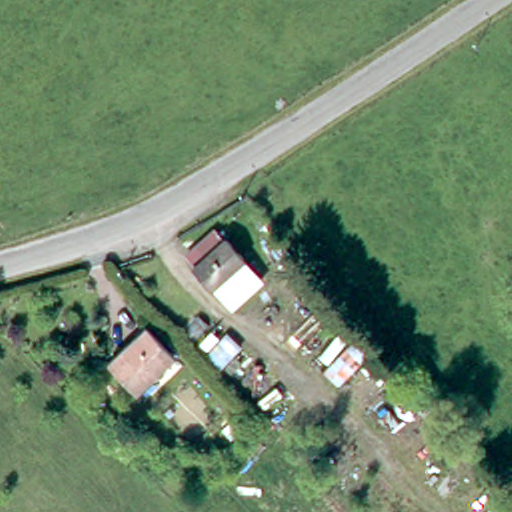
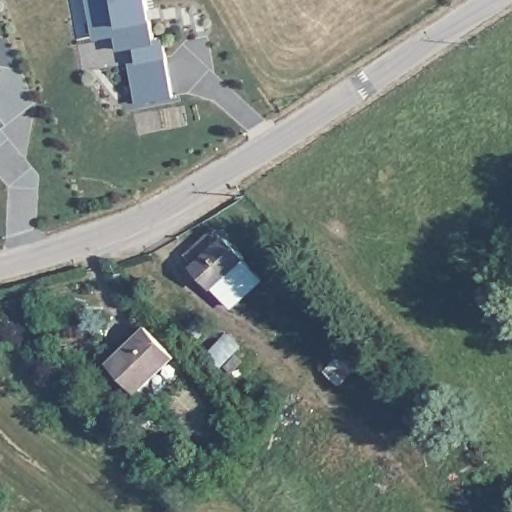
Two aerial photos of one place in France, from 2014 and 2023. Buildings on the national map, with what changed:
new [(87,0),(147,0),(151,23),(154,42),(163,41),(173,99),(135,105),(128,62),(137,61),(135,48),(119,51),(116,35),(94,40),(87,0)]
unchanged [(233,303),(215,284),(195,264),(186,254),(217,227),(225,237),(253,267),(262,277),(233,303)]
unchanged [(145,324),(172,353),(135,388),(107,360),(145,324)]

